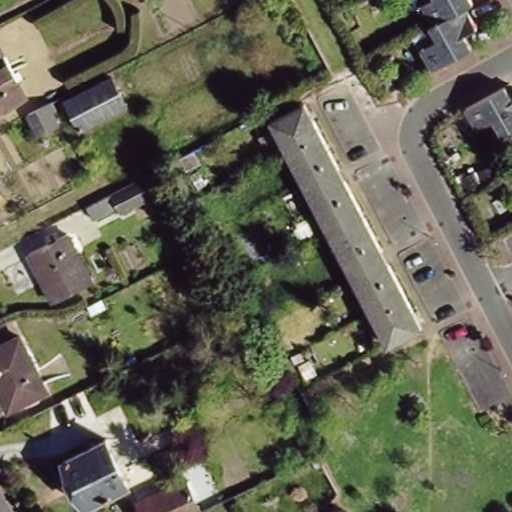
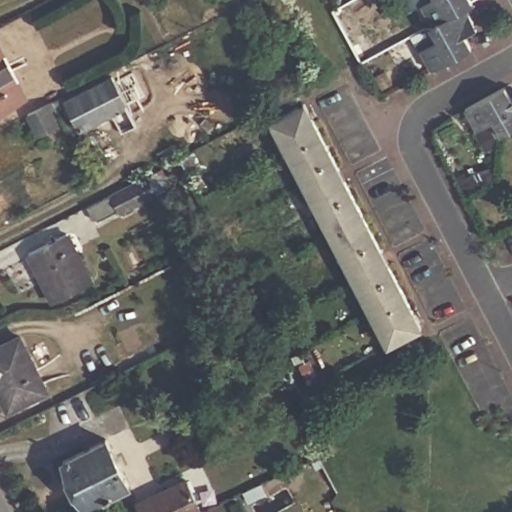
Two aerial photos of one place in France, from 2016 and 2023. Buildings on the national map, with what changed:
unchanged [(432,73),(425,59),(420,50),(412,36),(425,30),(432,26),(422,6),(433,0),(466,0),(470,7),(462,11),(470,25),(473,32),(465,36),(473,51),(432,73)]
unchanged [(0,105),(0,43),(1,43),(26,92),(0,105)]
unchanged [(126,110),(81,134),(67,106),(112,82),(126,110)]
unchanged [(495,139),(485,123),(474,130),(463,110),(503,88),(512,82),(512,129),(495,139)]
unchanged [(48,111),(56,126),(38,136),(26,114),(30,112),(50,102),(51,102),(54,108),(48,111)]
unchanged [(272,121),(305,104),(421,326),(388,344),(272,121)]
unchanged [(155,192),(118,211),(115,206),(91,219),(85,206),(145,175),(155,192)]
unchanged [(0,208),(0,206),(1,208),(0,208)]
unchanged [(27,254),(65,234),(90,281),(52,301),(27,254)]
unchanged [(0,346),(20,336),(48,390),(10,409),(0,389),(0,346)]
unchanged [(63,456),(105,435),(128,480),(86,501),(63,456)]
unchanged [(146,512),(142,504),(165,492),(188,481),(205,512),(203,512),(146,512)]

